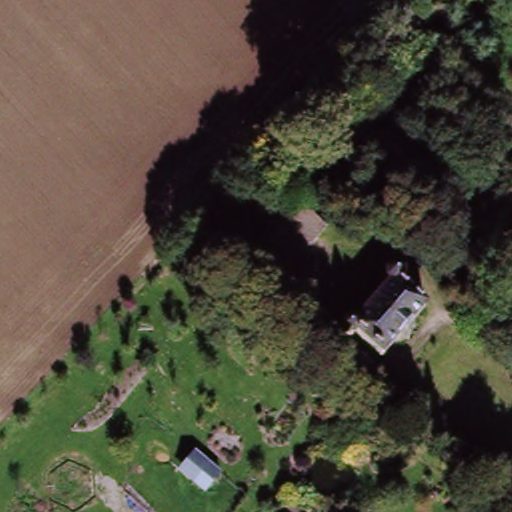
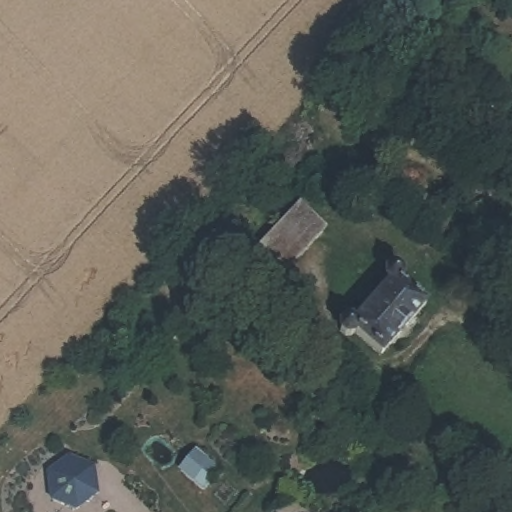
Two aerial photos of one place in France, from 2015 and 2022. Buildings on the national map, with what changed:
unchanged [(324,224),(285,268),(257,244),(298,202),(324,224)]
unchanged [(363,333),(362,334),(362,335),(362,336),(361,337),(360,338),(359,339),(357,340),(357,341),(355,342),(354,342),(352,342),(351,342),(350,342),(349,342),(347,342),(346,342),(345,341),(343,341),(342,340),(341,339),(340,338),(340,337),(339,337),(339,336),(338,334),(337,333),(337,332),(337,330),(337,329),(337,328),(337,327),(337,326),(337,325),(337,324),(338,324),(339,323),(339,322),(340,321),(341,320),(342,319),(343,318),(344,317),(346,316),(347,316),(348,316),(350,315),(351,315),(352,315),(354,316),(356,316),(357,317),(387,285),(387,284),(386,284),(385,283),(384,282),(383,281),(382,281),(382,280),(381,279),(380,278),(380,277),(380,276),(379,275),(379,274),(379,272),(379,271),(379,269),(379,268),(380,267),(380,265),(381,264),(382,263),(382,262),(384,261),(385,260),(386,259),(387,258),(389,258),(390,258),(392,257),(393,257),(395,258),(396,258),(397,258),(399,259),(400,260),(401,261),(402,262),(403,263),(404,264),(405,265),(406,267),(406,268),(406,270),(407,271),(407,273),(406,274),(406,276),(406,277),(405,278),(404,280),(404,281),(402,282),(402,283),(420,301),(411,310),(417,317),(394,341),(388,335),(378,346),(363,333)]
new [(97,492),(76,509),(50,498),(46,471),(69,455),(93,464),(97,492)]
unchanged [(213,463),(229,480),(213,495),(197,478),(213,463)]

